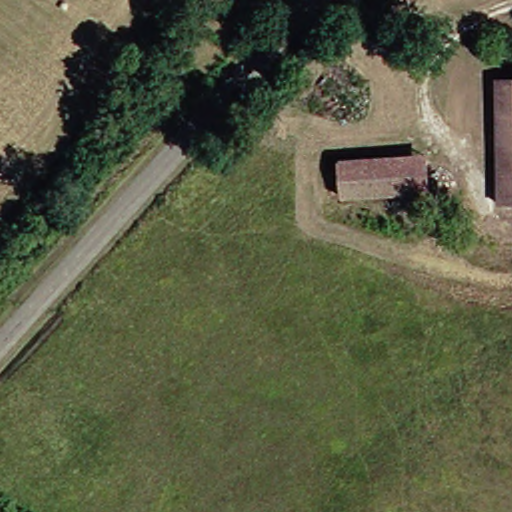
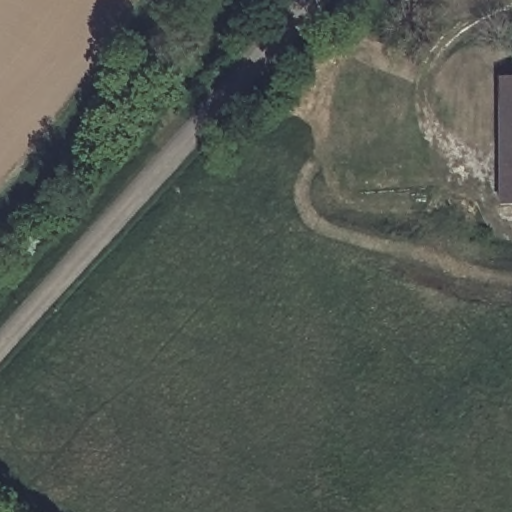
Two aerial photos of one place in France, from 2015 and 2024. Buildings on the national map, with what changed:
unchanged [(402,0),(408,0),(405,3),(402,0)]
unchanged [(512,149),(494,150),(492,81),(512,81),(512,149)]
unchanged [(512,207),(495,208),(494,150),(512,149),(512,207)]
demolished [(335,158),(425,156),(426,163),(441,162),(443,180),(426,181),(426,194),(337,199),(335,158)]

